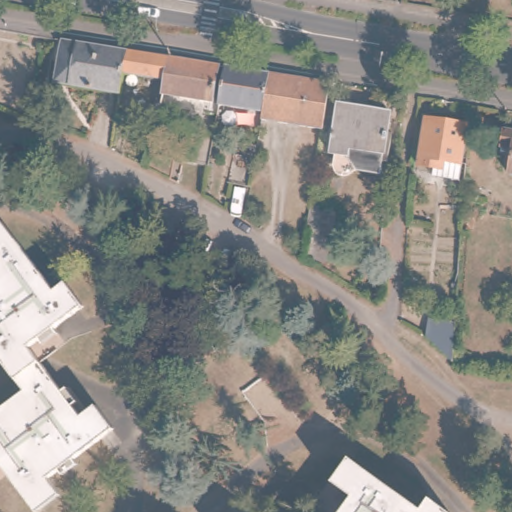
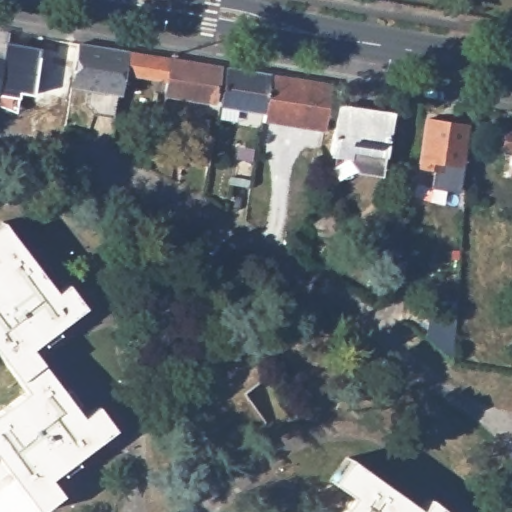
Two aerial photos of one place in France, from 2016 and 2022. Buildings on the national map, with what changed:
new [(6,31),(5,40),(41,47),(33,95),(18,92),(17,97),(15,112),(0,105),(0,30),(6,31)]
unchanged [(207,106),(191,104),(191,99),(169,95),(172,81),(132,75),(129,96),(81,89),(70,87),(76,45),(86,47),(133,54),(133,56),(177,62),(178,60),(224,67),(219,104),(208,102),(207,106)]
unchanged [(224,107),(230,68),(275,75),(269,113),(224,107)]
unchanged [(268,122),(269,113),(275,75),(305,79),(335,84),(329,131),(268,122)]
unchanged [(415,165),(424,121),(467,129),(463,156),(459,177),(458,177),(457,184),(427,179),(430,168),(415,165)]
unchanged [(390,129),(384,176),(331,168),(338,122),(390,129)]
unchanged [(507,127),(512,128),(512,145),(504,144),(507,127)]
unchanged [(159,160),(159,154),(162,133),(190,137),(185,163),(175,162),(159,160)]
unchanged [(512,150),(512,171),(509,171),(512,150)]
unchanged [(206,186),(207,182),(211,155),(230,158),(226,189),(215,187),(206,186)]
unchanged [(287,210),(319,216),(315,243),(290,239),(286,236),(284,235),(287,210)]
unchanged [(58,296),(69,288),(86,312),(32,351),(82,419),(97,408),(114,432),(49,481),(60,497),(41,512),(38,512),(0,460),(0,414),(28,393),(0,354),(0,230),(6,225),(58,296)]
unchanged [(424,337),(426,317),(451,319),(448,359),(424,337)]
unchanged [(454,512),(342,512),(353,496),(332,482),(351,456),(422,507),(430,494),(454,512)]

